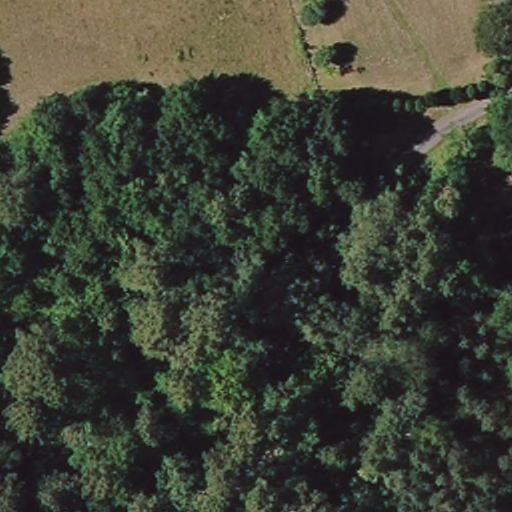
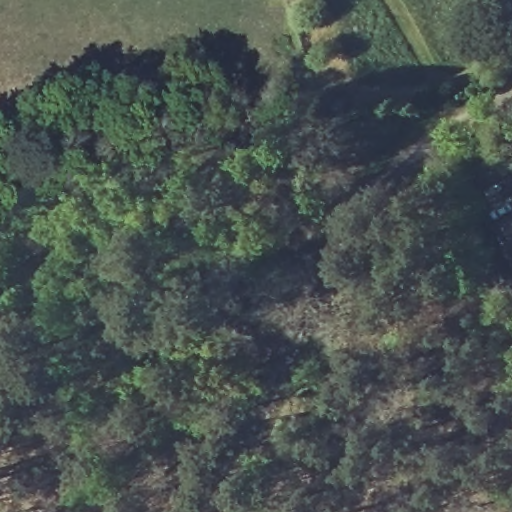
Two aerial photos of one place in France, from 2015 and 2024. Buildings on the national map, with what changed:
unchanged [(496,217),(512,211),(512,258),(505,241),(496,217)]
unchanged [(235,328),(250,338),(243,348),(227,340),(235,328)]

